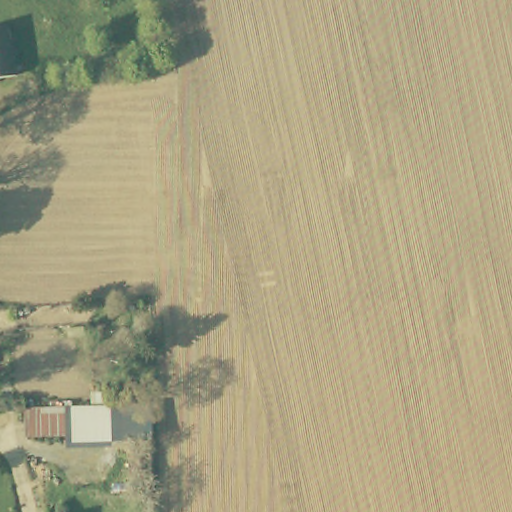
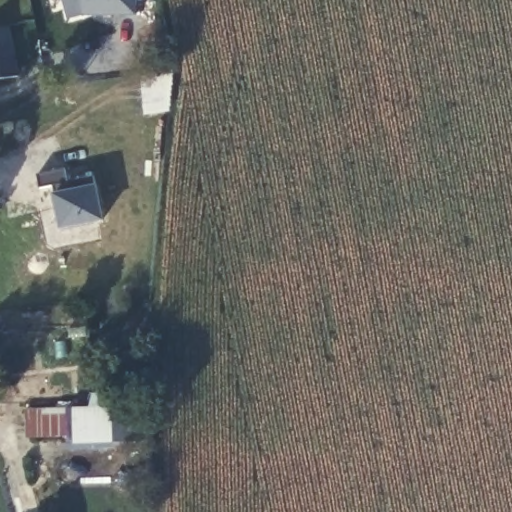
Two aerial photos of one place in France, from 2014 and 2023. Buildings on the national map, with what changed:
new [(80,16),(67,19),(63,0),(136,0),(136,16),(80,16)]
unchanged [(20,75),(0,79),(0,27),(11,25),(20,75)]
new [(69,181),(92,177),(102,221),(60,231),(52,188),(40,190),(38,174),(67,168),(69,181)]
unchanged [(25,409),(110,407),(110,445),(66,446),(66,436),(27,436),(25,409)]

